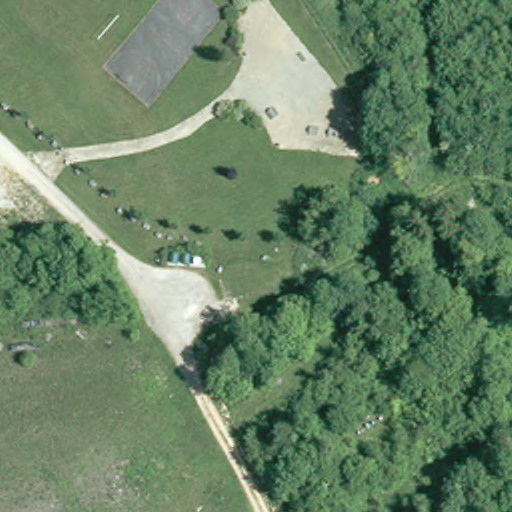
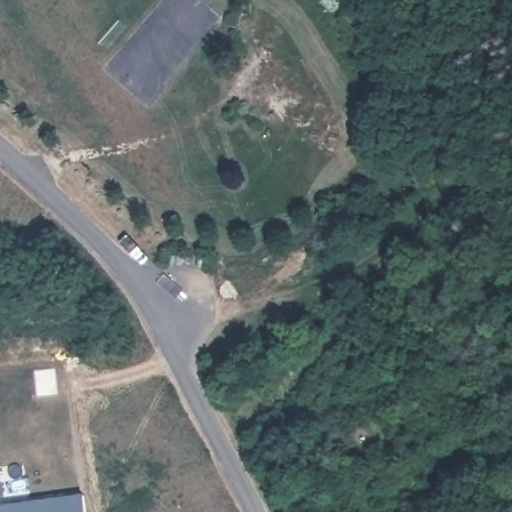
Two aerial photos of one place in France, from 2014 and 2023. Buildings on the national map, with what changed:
new [(83,493),(86,512),(2,512),(0,504),(83,493)]

